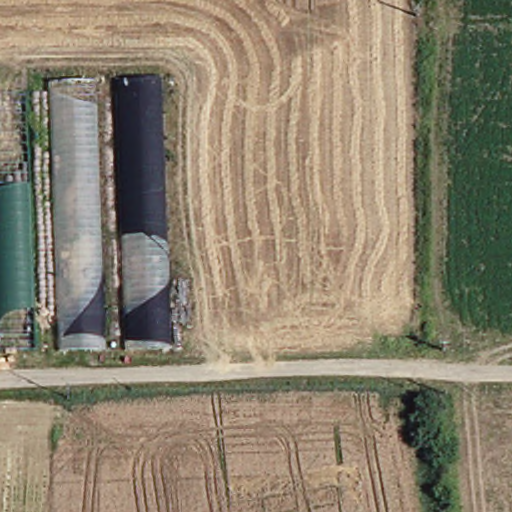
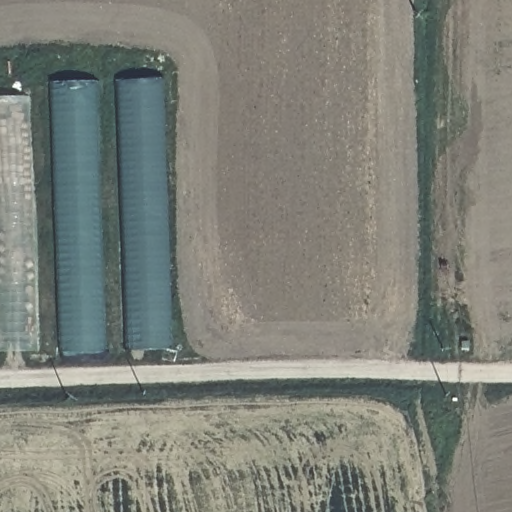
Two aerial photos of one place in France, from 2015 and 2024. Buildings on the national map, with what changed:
unchanged [(177,348),(136,348),(122,79),(167,76),(177,348)]
unchanged [(112,348),(65,350),(57,82),(101,80),(112,348)]
unchanged [(35,350),(0,351),(0,97),(26,97),(35,350)]

